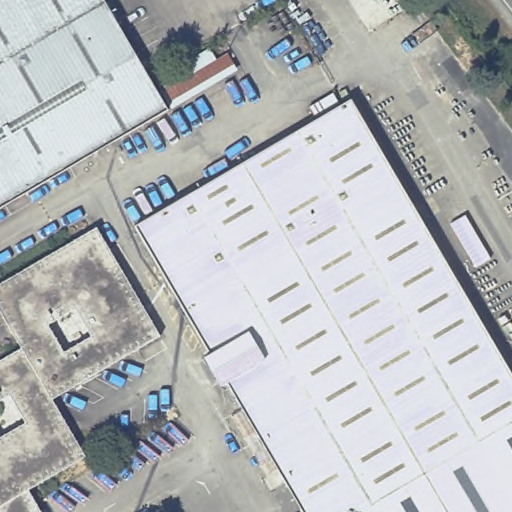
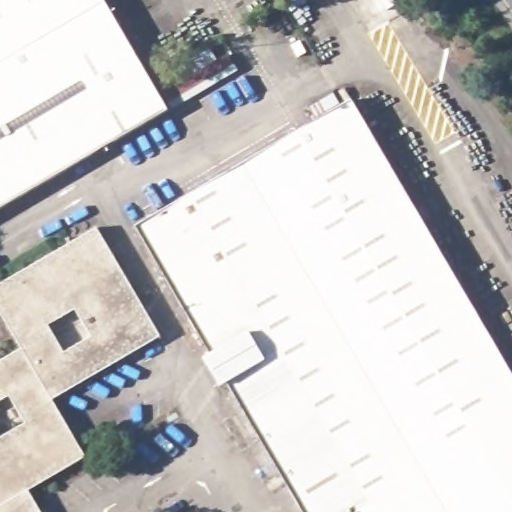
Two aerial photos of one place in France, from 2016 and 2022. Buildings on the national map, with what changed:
unchanged [(164,93),(185,80),(179,69),(215,48),(222,59),(231,53),(239,66),(171,106),(174,110),(0,210),(0,0),(109,0),(164,93)]
unchanged [(512,512),(304,512),(227,381),(221,384),(204,357),(211,353),(136,225),(211,181),(234,167),(317,119),(309,105),(333,92),(341,104),(350,99),(512,374),(512,512)]
unchanged [(27,347),(0,302),(0,286),(101,228),(165,336),(57,399),(90,455),(33,489),(46,512),(0,512),(0,363),(27,347)]

